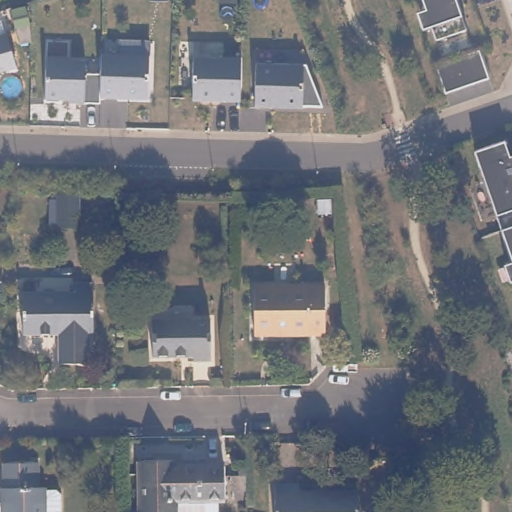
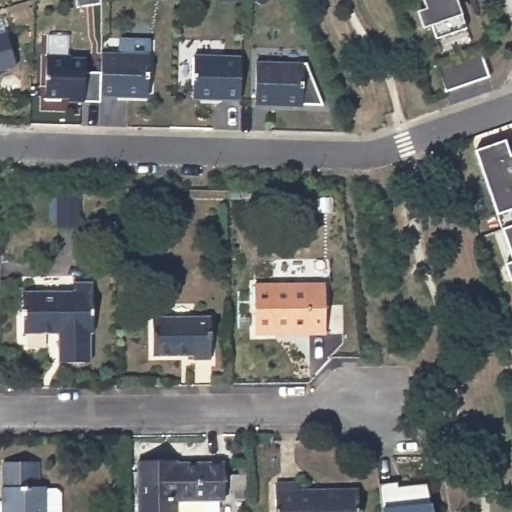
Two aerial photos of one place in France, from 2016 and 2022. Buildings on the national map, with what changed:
unchanged [(422,31),(416,14),(425,10),(422,0),(458,0),(467,29),(437,40),(434,27),(422,31)]
unchanged [(7,34),(17,66),(0,71),(0,36),(7,34)]
unchanged [(482,50),(492,79),(446,95),(436,65),(482,50)]
unchanged [(101,74),(101,54),(149,55),(148,97),(118,96),(118,98),(101,98),(101,74)]
unchanged [(76,103),(76,100),(61,100),(61,103),(46,102),(46,57),(70,57),(70,60),(85,61),(85,74),(101,74),(101,98),(100,103),(76,103)]
unchanged [(241,59),(240,90),(240,102),(223,102),(223,100),(192,100),(193,58),(241,59)]
unchanged [(255,64),(303,64),(303,106),(272,106),(272,108),(255,107),(255,64)]
unchanged [(512,153),(512,262),(475,152),(507,140),(512,153)]
unchanged [(44,207),(51,207),(51,204),(44,204),(44,197),(51,197),(73,197),(73,229),(50,228),(50,225),(44,225),(44,207)]
unchanged [(144,201),(144,215),(128,214),(129,200),(144,201)]
unchanged [(504,265),(512,264),(512,283),(510,284),(504,265)]
unchanged [(251,330),(251,278),(323,279),(323,330),(307,330),(274,330),(251,330)]
unchanged [(14,296),(64,295),(64,284),(85,283),(87,333),(83,333),(83,363),(54,363),(53,335),(16,336),(14,296)]
unchanged [(151,317),(209,313),(212,357),(195,358),(195,354),(153,355),(151,317)]
unchanged [(36,457),(37,482),(44,482),(45,485),(56,485),(60,489),(61,511),(60,512),(1,512),(0,483),(0,482),(3,482),(2,459),(36,457)]
unchanged [(136,461),(175,459),(175,464),(223,462),(225,498),(214,498),(214,512),(137,512),(136,461)]
unchanged [(273,476),(296,475),(296,483),(357,481),(359,512),(274,512),(273,476)]
new [(435,512),(382,512),(382,507),(380,483),(397,482),(398,486),(427,483),(430,503),(433,502),(435,512)]

